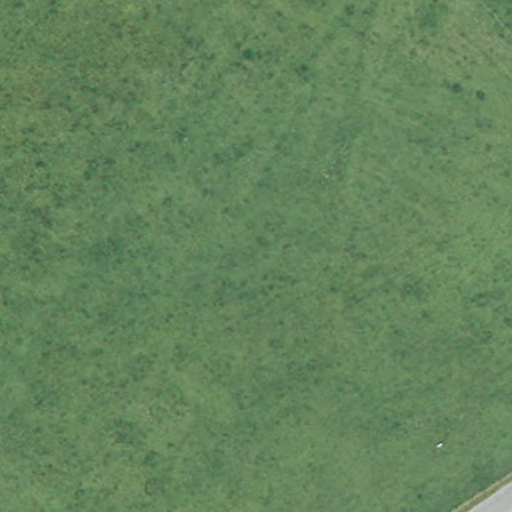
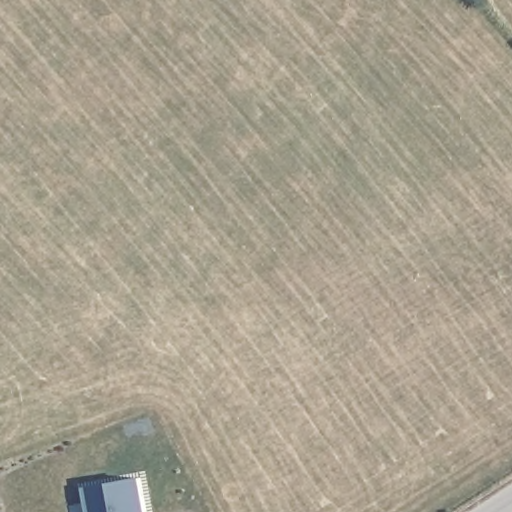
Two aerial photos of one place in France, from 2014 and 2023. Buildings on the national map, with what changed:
new [(82,489),(108,483),(142,476),(147,512),(87,512),(82,489)]

